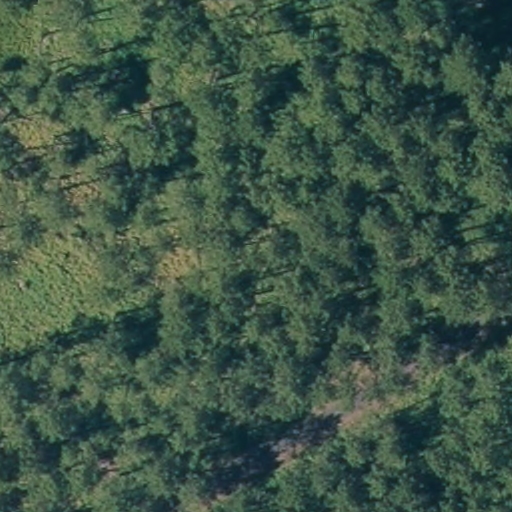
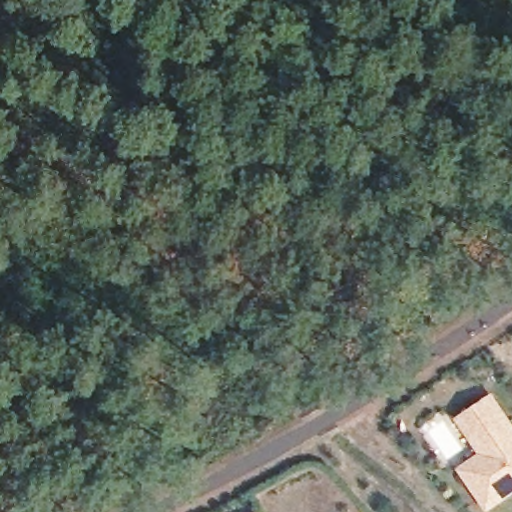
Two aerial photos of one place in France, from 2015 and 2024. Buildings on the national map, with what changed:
new [(461,467),(479,454),(456,418),(493,394),(512,422),(512,495),(487,512),(461,467)]

